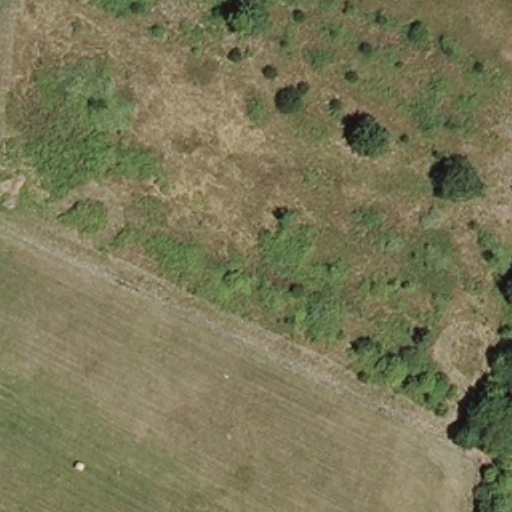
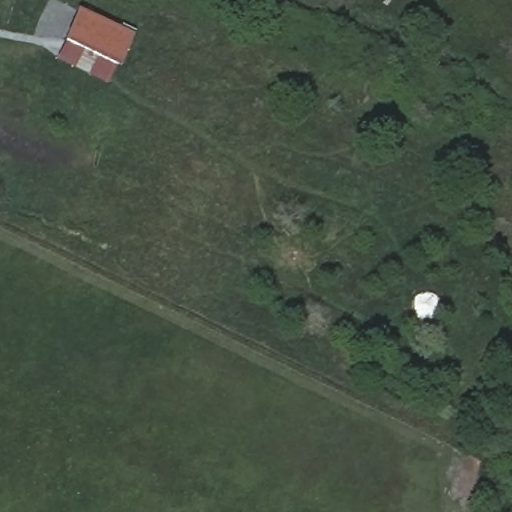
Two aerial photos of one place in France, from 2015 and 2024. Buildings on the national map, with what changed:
new [(133,33),(108,84),(56,58),(80,9),(133,33)]

